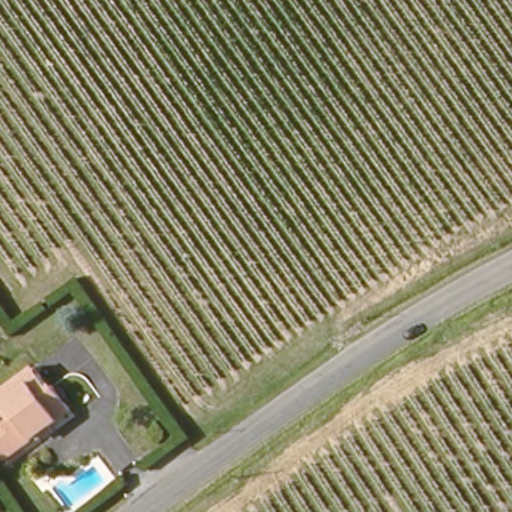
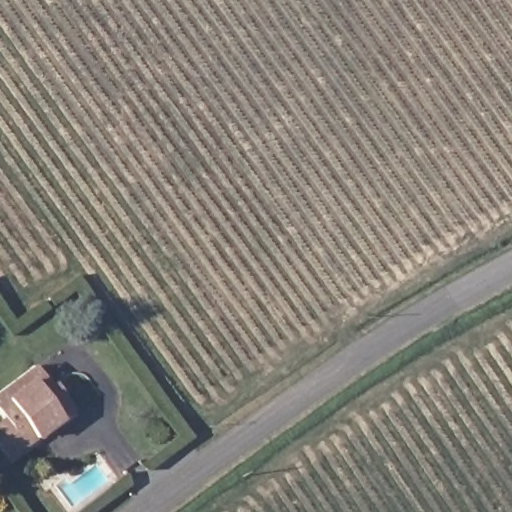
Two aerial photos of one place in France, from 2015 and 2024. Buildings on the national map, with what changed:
unchanged [(80,412),(60,426),(55,419),(40,430),(45,438),(10,463),(0,449),(0,425),(8,419),(0,408),(0,397),(0,386),(31,364),(36,372),(52,394),(62,387),(80,412)]

